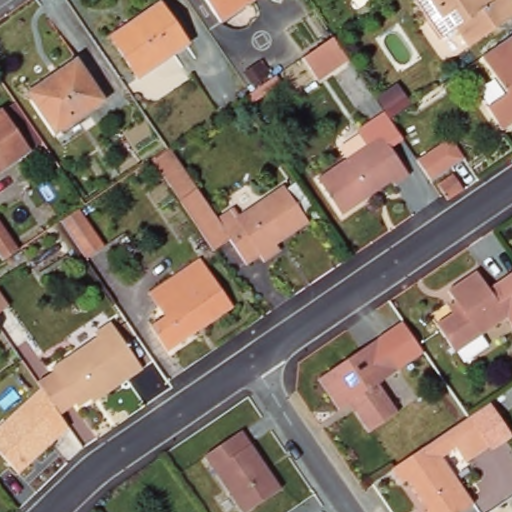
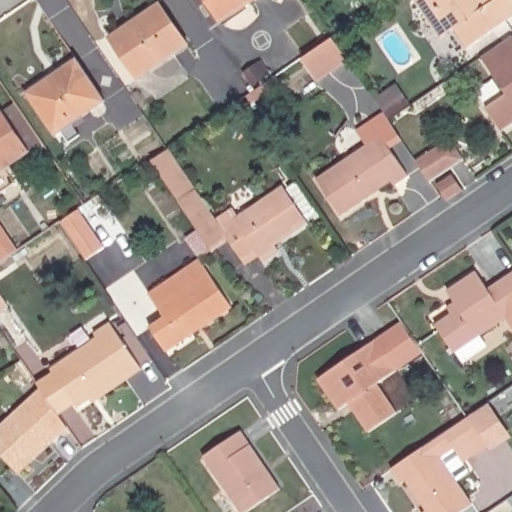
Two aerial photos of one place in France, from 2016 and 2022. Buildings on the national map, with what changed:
unchanged [(220,20),(207,0),(249,0),(220,20)]
unchanged [(512,13),(466,45),(453,26),(439,35),(416,0),(512,0),(512,13)]
unchanged [(187,42),(137,76),(109,34),(124,24),(127,27),(161,3),(187,42)]
unchanged [(485,105),(507,91),(481,52),(511,31),(512,31),(512,120),(500,128),(485,105)]
unchanged [(301,54),(332,33),(347,56),(316,78),(300,55),(301,54)]
unchanged [(109,98),(60,131),(33,92),(62,71),(61,69),(80,56),(109,98)]
unchanged [(375,96),(392,84),(405,103),(389,115),(375,96)]
unchanged [(9,102),(38,144),(25,153),(0,170),(0,108),(9,102)]
unchanged [(382,132),(410,172),(395,183),(392,179),(340,213),(316,176),(382,132)]
unchanged [(416,157),(450,135),(464,156),(430,178),(416,157)]
unchanged [(195,186),(178,198),(150,157),(166,145),(195,186)]
unchanged [(437,181),(452,171),(462,186),(447,196),(437,181)]
unchanged [(232,205),(238,212),(282,183),(308,219),(275,242),(279,249),(262,260),(259,254),(246,262),(227,236),(215,217),(232,205)]
unchanged [(215,217),(227,236),(211,247),(178,198),(195,186),(215,217)]
unchanged [(59,223),(78,210),(104,248),(85,260),(59,223)]
unchanged [(1,240),(5,246),(11,242),(20,236),(26,245),(1,262),(0,261),(0,241),(1,240)]
unchanged [(148,289),(199,255),(232,305),(167,349),(150,323),(165,313),(148,289)]
unchanged [(493,284),(512,272),(512,315),(511,314),(460,349),(440,320),(456,308),(452,302),(460,297),(452,286),(480,267),(493,284)]
unchanged [(0,314),(0,296),(9,308),(0,314)]
unchanged [(53,370),(50,366),(97,334),(95,330),(110,319),(142,366),(126,376),(124,373),(76,405),(74,400),(58,410),(37,381),(53,370)]
unchanged [(338,406),(316,376),(375,336),(397,366),(376,380),(397,410),(368,430),(355,409),(348,400),(338,406)]
unchanged [(67,430),(19,474),(0,452),(0,425),(39,389),(67,430)]
unchanged [(401,481),(390,465),(427,440),(467,413),(468,412),(490,442),(463,460),(454,446),(441,455),(472,501),(456,512),(423,512),(421,511),(426,508),(421,500),(406,478),(401,481)]
unchanged [(244,510),(204,451),(241,426),(260,455),(268,467),(281,486),(244,510)]

